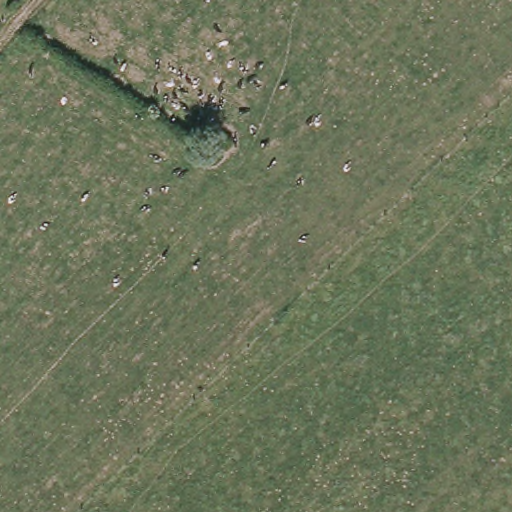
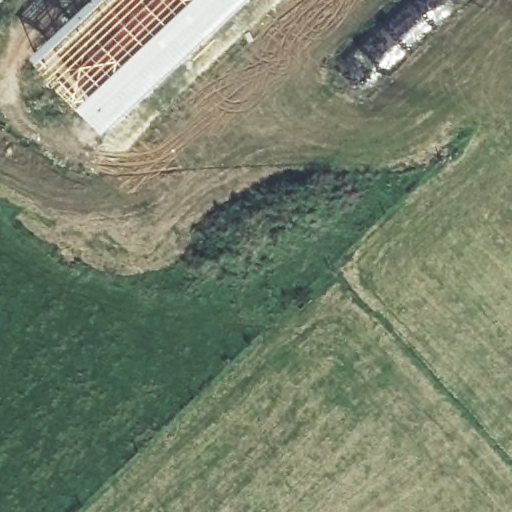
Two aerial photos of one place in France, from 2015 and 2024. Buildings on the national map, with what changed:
new [(104,135),(33,58),(95,0),(248,0),(104,135)]

